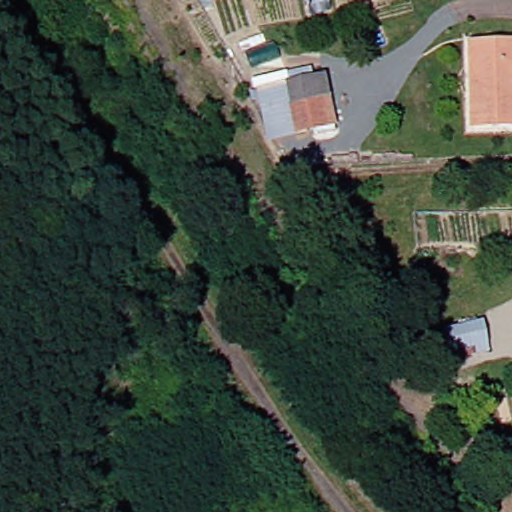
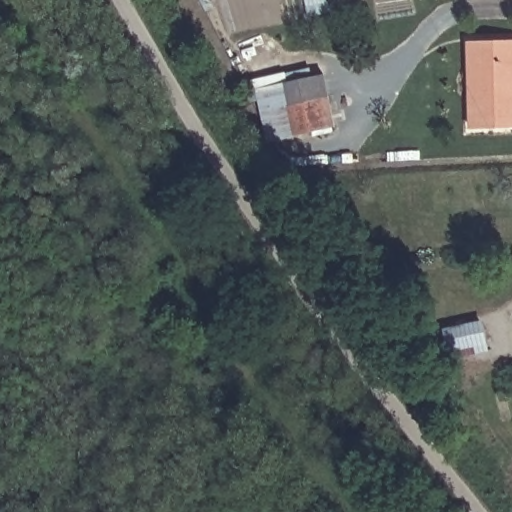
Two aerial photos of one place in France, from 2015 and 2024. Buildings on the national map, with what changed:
unchanged [(504,124),(457,125),(456,35),(512,34),(512,124),(504,124)]
unchanged [(275,80),(314,74),(325,123),(284,132),(258,139),(244,87),(275,80)]
unchanged [(477,345),(440,352),(428,355),(422,332),(434,330),(433,327),(471,320),(477,345)]

